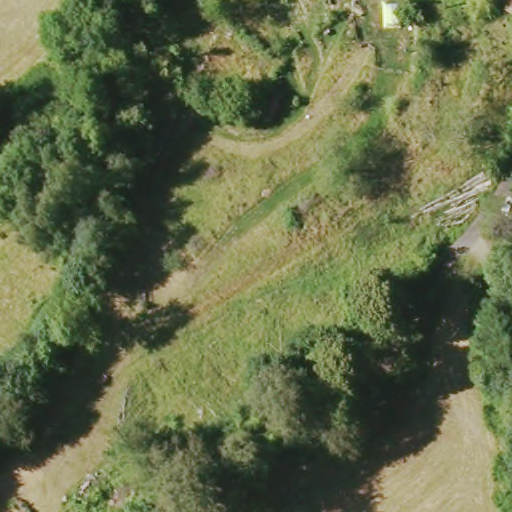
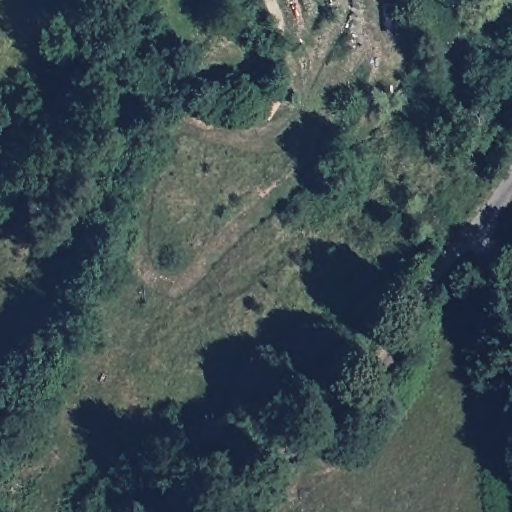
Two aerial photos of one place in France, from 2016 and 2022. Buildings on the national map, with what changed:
[]

